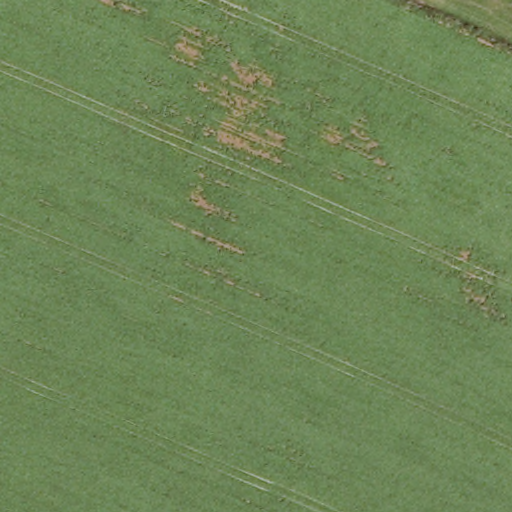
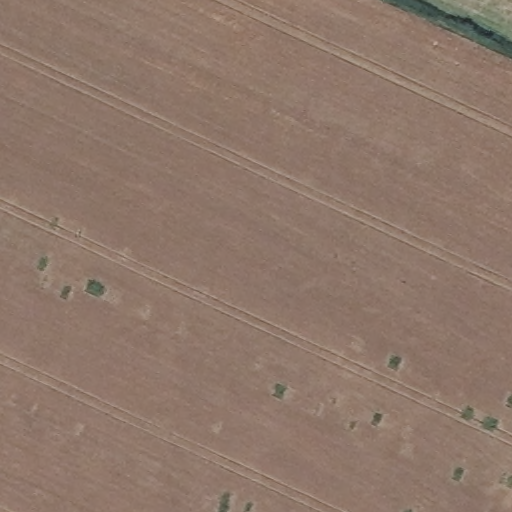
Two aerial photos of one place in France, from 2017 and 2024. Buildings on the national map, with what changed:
[]

